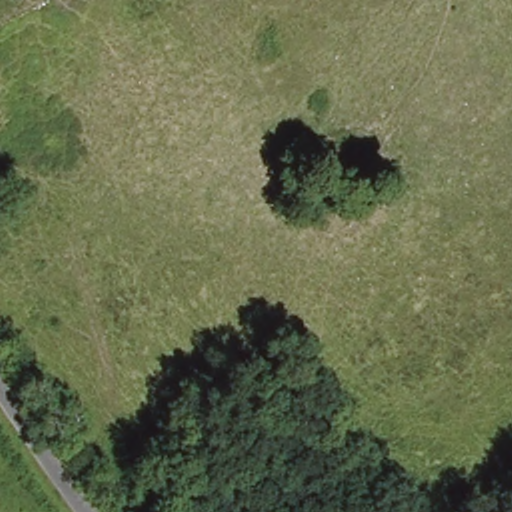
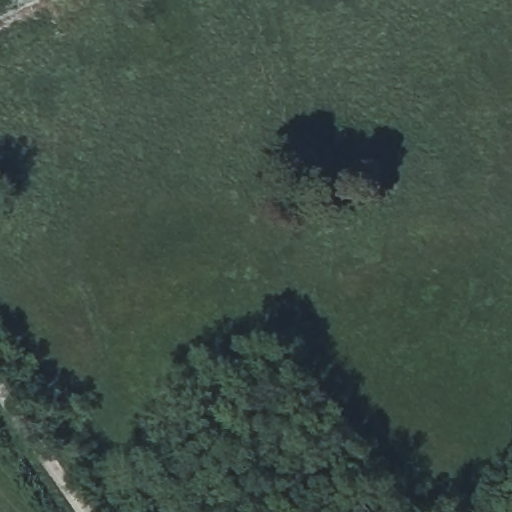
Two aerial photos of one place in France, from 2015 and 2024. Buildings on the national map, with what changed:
[]

